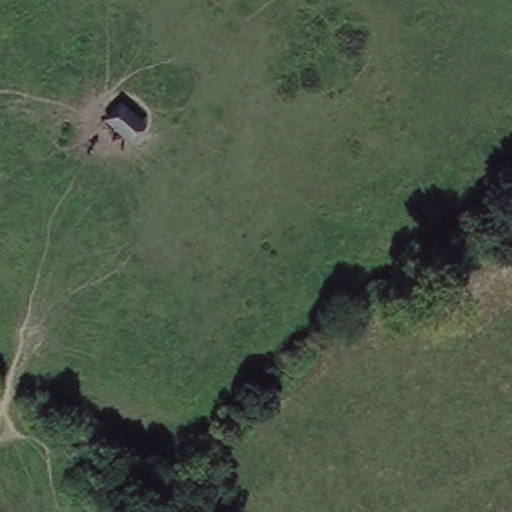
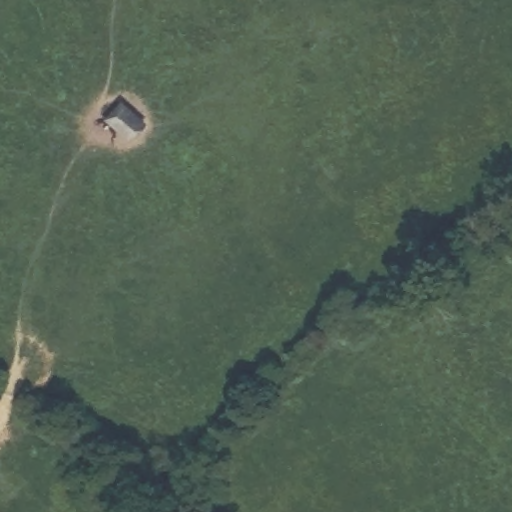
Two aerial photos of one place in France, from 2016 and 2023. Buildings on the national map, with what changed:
unchanged [(116,99),(135,122),(121,134),(101,111),(116,99)]

